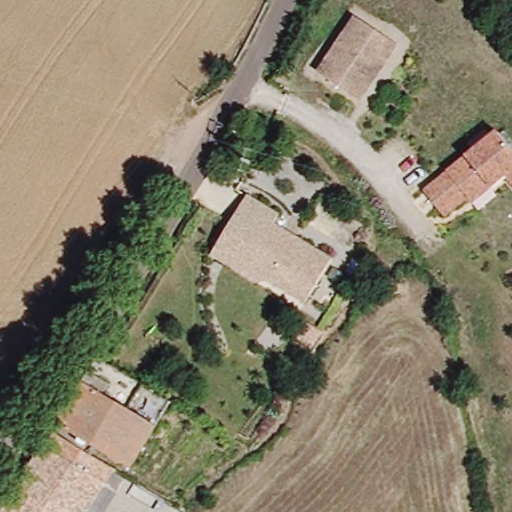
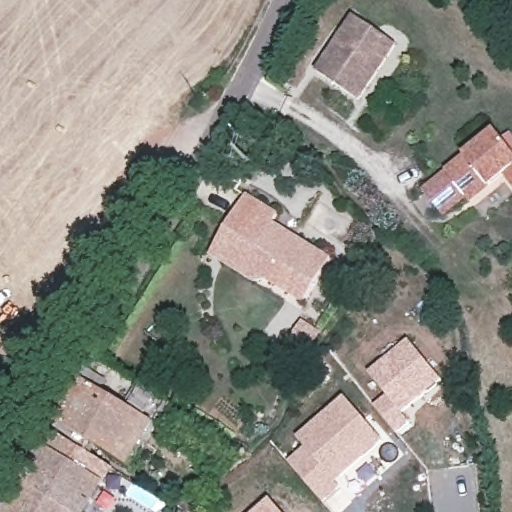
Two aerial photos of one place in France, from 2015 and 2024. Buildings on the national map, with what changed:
unchanged [(355,16),(399,47),(364,100),(319,70),(355,16)]
unchanged [(463,156),(492,134),(512,155),(512,191),(501,181),(492,187),(471,205),(465,202),(442,219),(422,190),(444,171),(463,156)]
unchanged [(219,242),(246,200),(276,219),(272,227),(297,244),(327,263),(300,306),(264,283),(253,285),(209,257),(219,242)]
new [(285,345),(299,320),(321,333),(306,356),(285,345)]
new [(408,338),(442,380),(403,411),(409,420),(394,432),(373,405),(385,395),(368,372),(408,338)]
unchanged [(132,460),(127,468),(102,453),(93,447),(80,440),(53,423),(94,356),(166,400),(132,460)]
new [(289,463),(304,447),(298,438),(345,397),(383,441),(337,485),(340,490),(322,503),(289,463)]
unchanged [(48,432),(75,448),(87,456),(97,462),(107,468),(97,485),(38,448),(48,432)]
unchanged [(38,448),(97,485),(81,512),(70,512),(17,482),(38,448)]
demolished [(97,462),(102,453),(127,468),(167,501),(161,512),(81,512),(97,485),(107,468),(97,462)]
unchanged [(70,512),(0,512),(0,511),(17,482),(70,512)]
new [(282,512),(255,512),(271,498),(282,512)]

